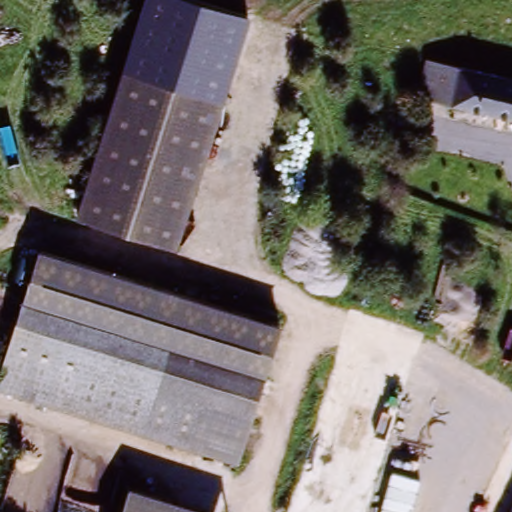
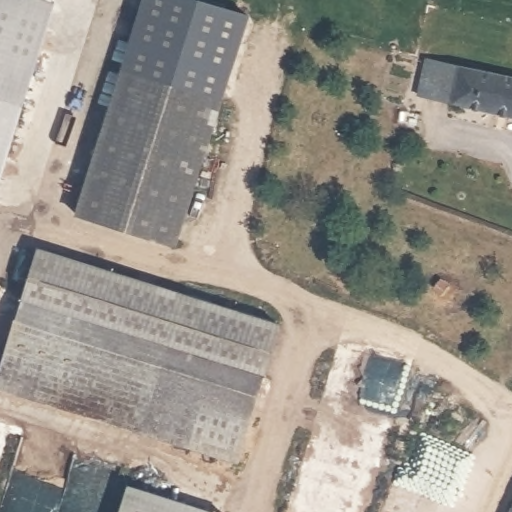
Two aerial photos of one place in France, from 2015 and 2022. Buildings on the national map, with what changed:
new [(54,2),(0,178),(0,0),(48,0),(54,2)]
unchanged [(147,0),(178,0),(248,23),(171,250),(73,215),(147,0)]
unchanged [(436,69),(512,85),(512,123),(428,106),(436,69)]
unchanged [(38,246),(280,322),(271,360),(28,282),(38,246)]
unchanged [(271,360),(251,423),(238,466),(0,390),(0,357),(6,358),(28,282),(271,360)]
unchanged [(120,512),(128,484),(219,512),(120,512)]
unchanged [(512,512),(511,512),(512,509),(512,512)]

